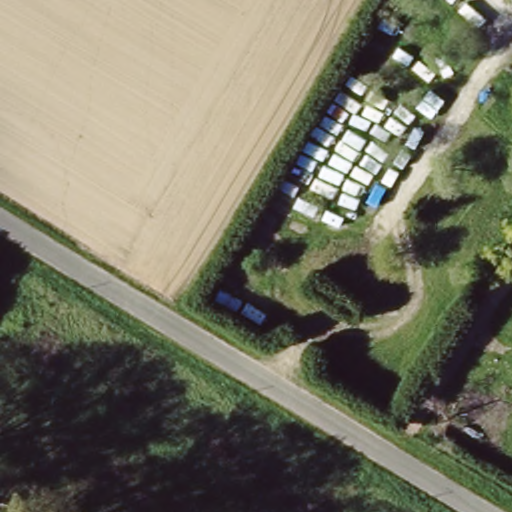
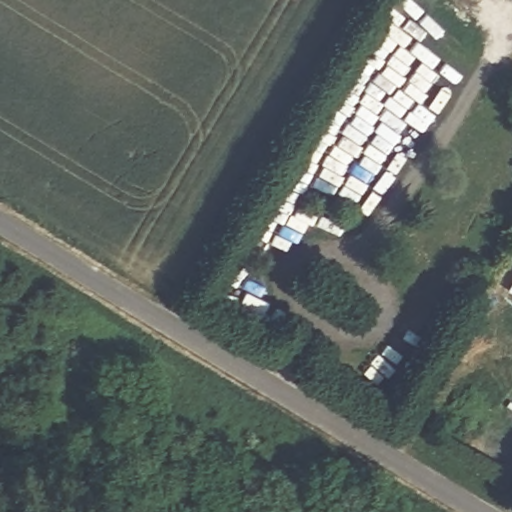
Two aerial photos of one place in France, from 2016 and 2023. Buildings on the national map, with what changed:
[]

